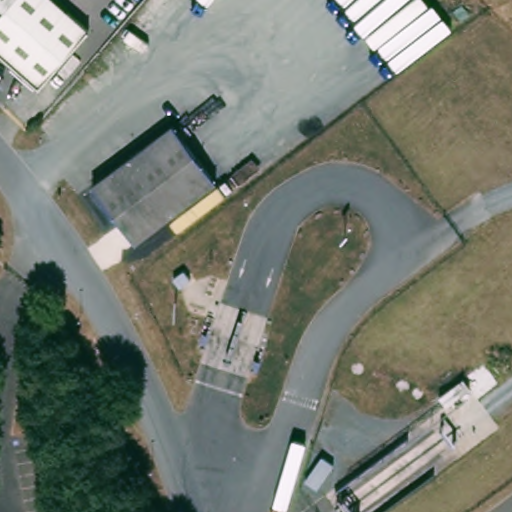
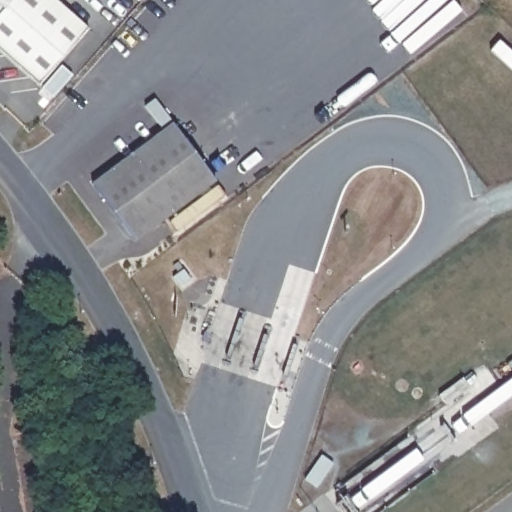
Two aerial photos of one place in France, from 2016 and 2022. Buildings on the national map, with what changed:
unchanged [(11,0),(0,13),(0,0),(11,0)]
unchanged [(43,91),(0,53),(0,13),(11,0),(63,0),(95,30),(43,91)]
unchanged [(172,125),(215,181),(137,242),(95,186),(172,125)]

